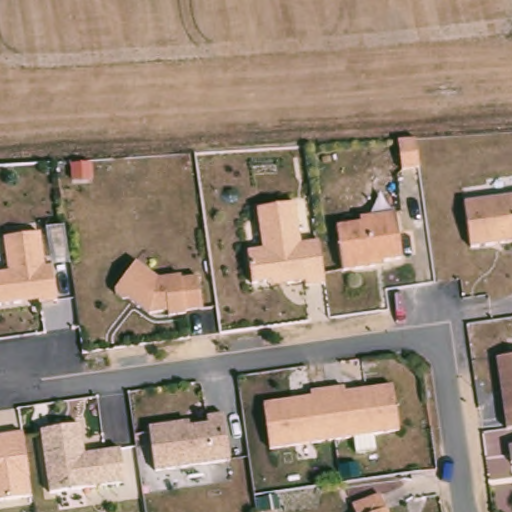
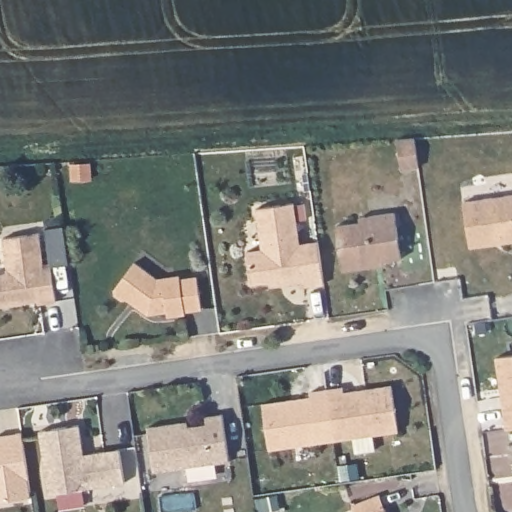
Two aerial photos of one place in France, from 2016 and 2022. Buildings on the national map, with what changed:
unchanged [(428,169),(411,170),(408,139),(425,139),(428,169)]
unchanged [(512,238),(476,241),(472,195),(512,192),(512,238)]
unchanged [(255,277),(252,244),(268,243),(264,201),(302,198),(306,239),(324,238),(327,263),(328,281),(309,282),(308,277),(291,279),(274,280),(274,275),(255,277)]
unchanged [(367,221),(367,216),(402,212),(407,259),(379,261),(380,265),(347,268),(343,223),(367,221)]
unchanged [(49,265),(56,265),(59,300),(42,302),(41,298),(0,302),(0,270),(13,269),(10,234),(46,231),(49,265)]
unchanged [(166,276),(189,274),(189,278),(206,276),(209,309),(192,310),(192,313),(174,315),(174,310),(155,311),(135,294),(129,294),(123,288),(123,282),(145,257),(166,276)]
unchanged [(512,362),(512,435),(505,435),(498,363),(512,362)]
unchanged [(358,450),(356,435),(272,443),(267,397),(315,393),(315,388),(332,386),(348,384),(349,390),(397,385),(402,431),(376,434),(378,449),(358,450)]
unchanged [(187,421),(188,427),(214,424),(213,416),(231,415),(235,462),(159,469),(155,424),(187,421)]
unchanged [(54,490),(48,427),(87,423),(90,453),(112,451),(115,485),(54,490)]
unchanged [(0,436),(24,433),(35,499),(0,503),(0,442),(0,436)]
unchanged [(512,468),(508,469),(506,450),(512,450),(512,468)]
unchanged [(393,512),(363,512),(360,503),(388,495),(393,512)]

